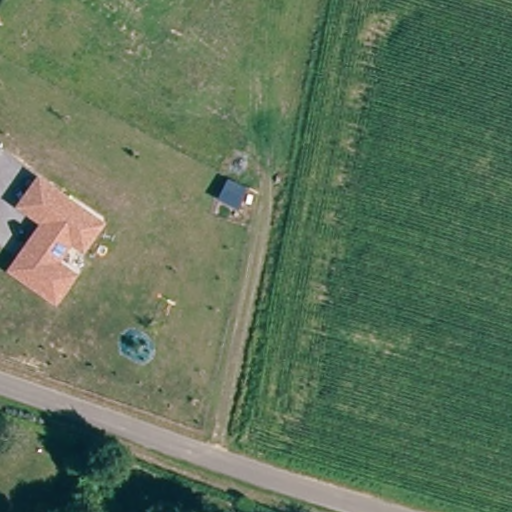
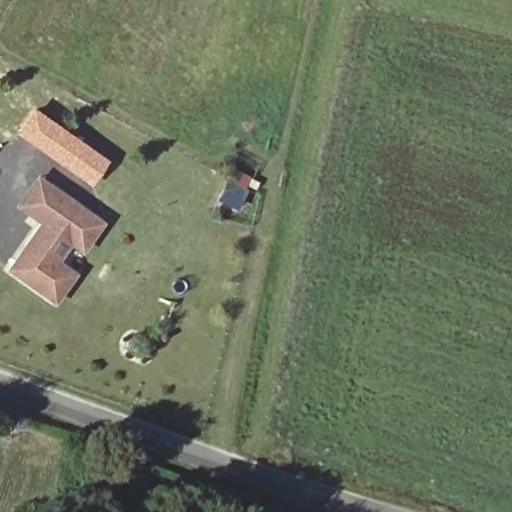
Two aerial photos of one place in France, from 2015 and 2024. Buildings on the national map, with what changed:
new [(98,153),(96,156),(108,165),(92,187),(16,133),(33,108),(98,153)]
unchanged [(84,252),(70,245),(59,259),(81,275),(56,303),(6,270),(38,222),(14,205),(36,175),(103,222),(84,252)]

